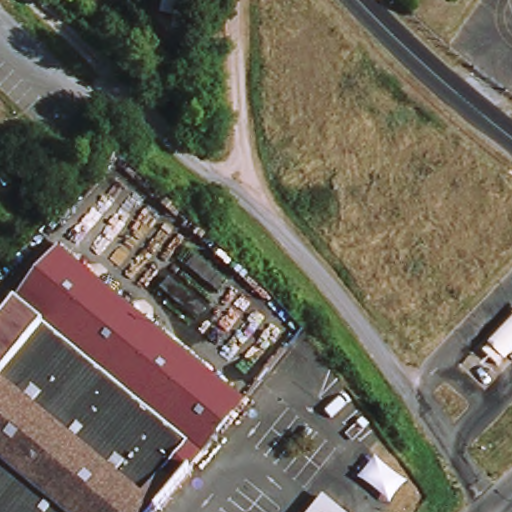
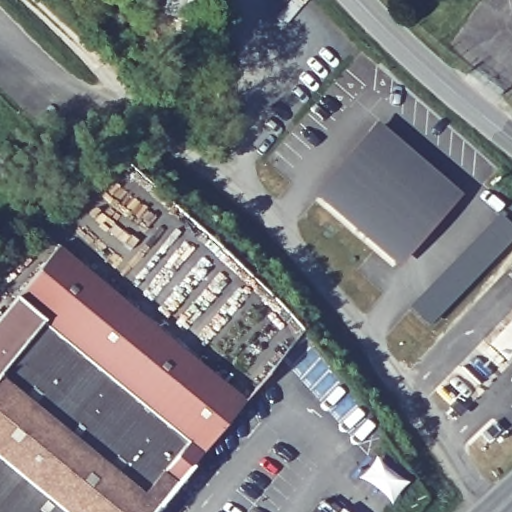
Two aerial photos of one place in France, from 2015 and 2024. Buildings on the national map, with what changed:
new [(374,124),(452,193),(393,258),(316,189),(374,124)]
new [(512,232),(512,241),(426,327),(406,307),(497,217),(512,232)]
unchanged [(246,407),(158,512),(148,512),(140,505),(135,512),(0,512),(0,321),(59,250),(246,407)]
unchanged [(486,348),(512,322),(512,355),(502,364),(486,348)]
unchanged [(495,369),(480,355),(486,350),(500,364),(495,369)]
unchanged [(410,484),(392,505),(360,478),(377,457),(410,484)]
unchanged [(341,512),(308,512),(321,496),(341,512)]
unchanged [(148,512),(135,512),(140,505),(148,512)]

